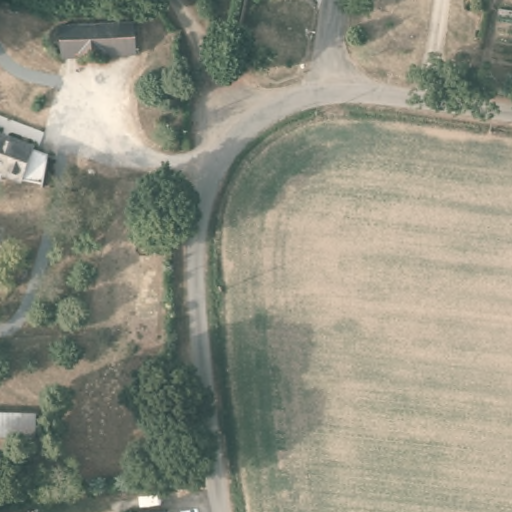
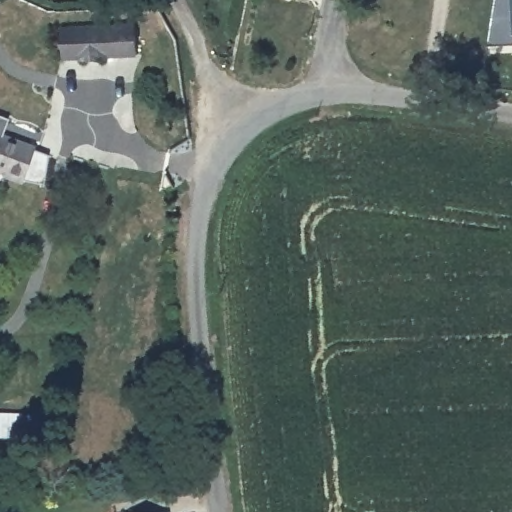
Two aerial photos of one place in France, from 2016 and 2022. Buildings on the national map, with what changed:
new [(512,47),(488,47),(495,0),(512,0),(512,47)]
unchanged [(78,53),(59,54),(59,23),(142,21),(143,52),(107,53),(107,61),(96,62),(78,62),(78,53)]
unchanged [(39,139),(24,171),(7,165),(1,171),(0,171),(0,122),(39,139)]
unchanged [(132,328),(155,328),(155,366),(142,366),(132,366),(132,328)]
unchanged [(175,512),(149,512),(175,510),(175,512)]

